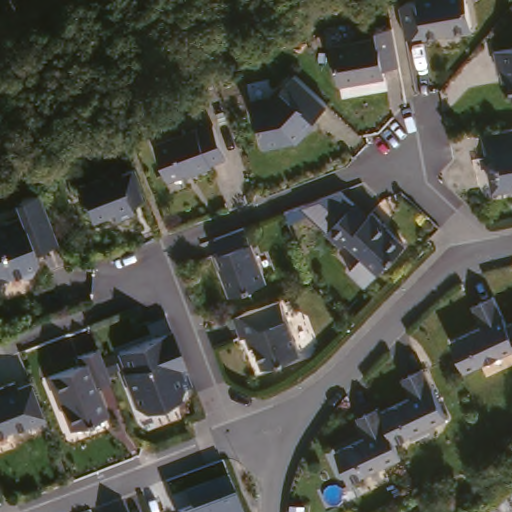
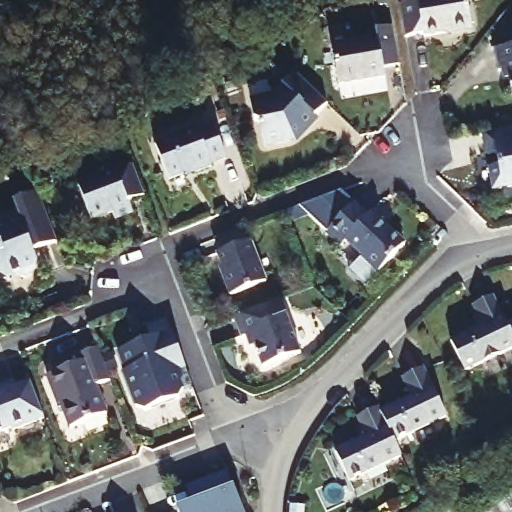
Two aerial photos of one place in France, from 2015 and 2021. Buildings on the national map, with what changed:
unchanged [(420,38),(420,35),(402,39),(397,10),(396,7),(404,2),(414,1),(414,0),(463,0),(468,30),(420,38)]
unchanged [(391,30),(397,68),(381,71),(382,79),(336,86),(330,48),(375,40),(373,32),(391,30)]
unchanged [(512,49),(512,99),(511,99),(505,74),(497,75),(492,53),(512,49)]
unchanged [(293,82),(327,113),(301,140),(299,139),(290,150),(263,155),(259,133),(254,130),(250,110),(272,105),(293,82)]
unchanged [(199,131),(214,125),(227,158),(211,164),(212,166),(196,172),(195,170),(169,180),(156,145),(198,129),(199,131)]
unchanged [(512,128),(512,187),(492,191),(488,170),(497,168),(495,155),(486,156),(482,134),(512,128)]
unchanged [(133,166),(144,196),(129,202),(132,212),(115,219),(112,211),(90,220),(77,184),(98,176),(97,172),(117,165),(119,171),(133,166)]
unchanged [(57,242),(39,249),(33,246),(30,253),(33,255),(36,261),(29,275),(23,276),(9,271),(7,277),(0,280),(0,223),(20,216),(24,207),(21,199),(39,192),(57,242)]
unchanged [(370,212),(385,227),(384,228),(403,245),(372,278),(357,263),(362,258),(345,241),(339,246),(325,233),(352,204),(366,216),(370,212)]
unchanged [(243,229),(264,283),(229,296),(218,268),(221,268),(216,255),(218,254),(213,240),(243,229)]
unchanged [(502,316),(506,326),(507,328),(512,338),(512,349),(464,372),(450,342),(482,327),(477,318),(472,307),(478,304),(492,297),(502,316)]
unchanged [(282,299),(303,352),(266,367),(253,334),(244,337),(236,317),(282,299)]
unchanged [(507,328),(506,326),(512,324),(512,338),(507,328)]
unchanged [(171,336),(184,371),(175,375),(182,394),(178,403),(145,416),(135,412),(122,377),(125,376),(117,357),(171,336)]
unchanged [(98,353),(110,385),(96,390),(106,419),(70,432),(56,396),(54,397),(48,380),(80,368),(77,360),(98,353)]
unchanged [(449,420),(397,445),(384,417),(383,415),(415,400),(410,391),(405,381),(412,378),(426,371),(449,420)]
unchanged [(40,422),(8,435),(7,432),(0,435),(0,389),(9,385),(11,390),(25,385),(40,422)]
unchanged [(383,415),(384,417),(397,445),(399,447),(404,460),(353,484),(339,455),(370,440),(369,439),(365,430),(360,420),(367,417),(381,410),(383,415)]
unchanged [(176,510),(187,504),(183,490),(224,475),(232,488),(243,512),(177,512),(176,510)]

